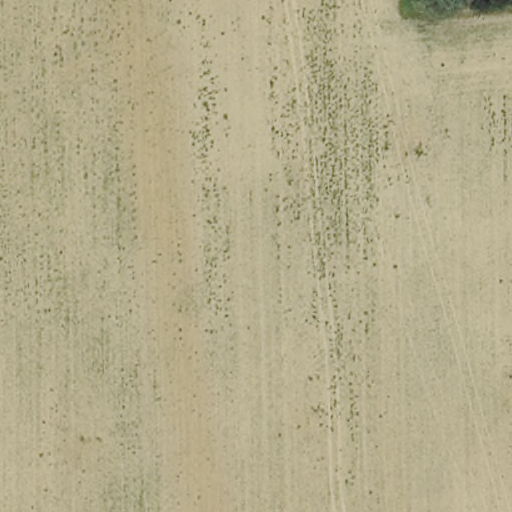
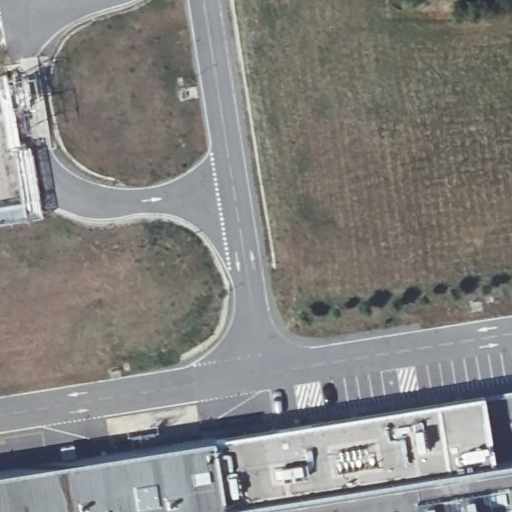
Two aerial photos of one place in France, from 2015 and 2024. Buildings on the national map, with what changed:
new [(484,396),(512,393),(512,512),(0,512),(0,474),(214,440),(484,396)]

